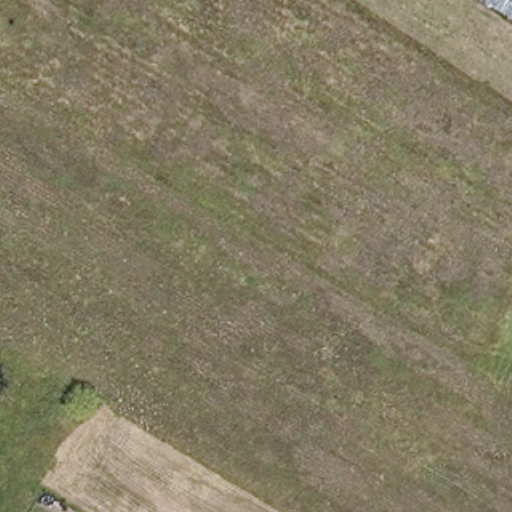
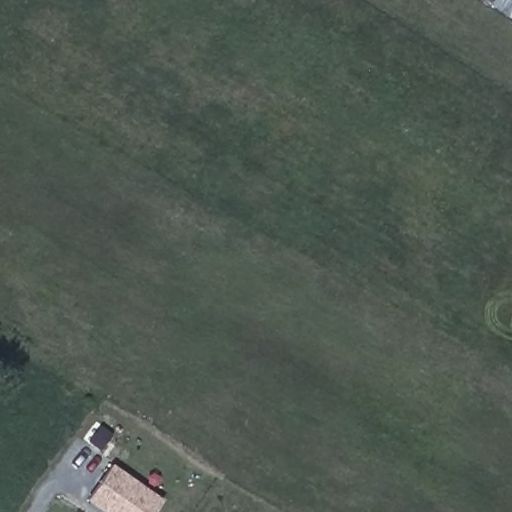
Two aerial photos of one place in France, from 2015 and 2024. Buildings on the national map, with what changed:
new [(155,512),(103,512),(85,500),(112,463),(164,500),(155,512)]

